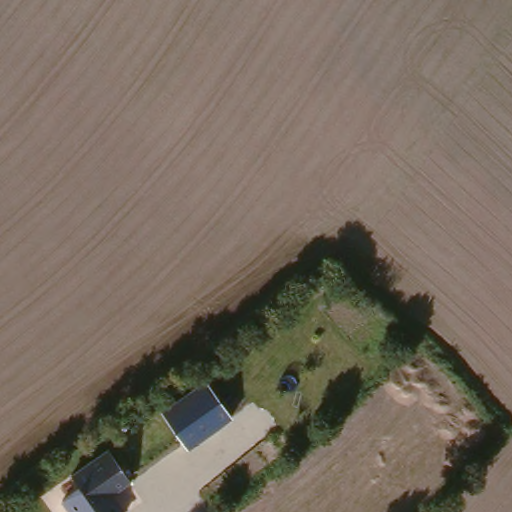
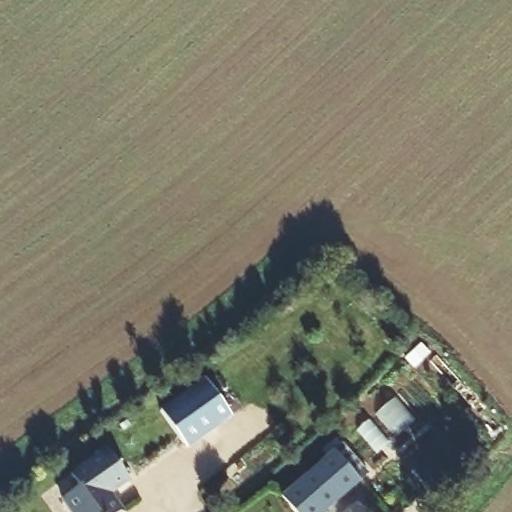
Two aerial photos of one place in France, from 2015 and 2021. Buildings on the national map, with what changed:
unchanged [(188,449),(160,410),(204,377),(233,415),(188,449)]
unchanged [(58,502),(79,487),(66,470),(103,445),(128,481),(108,496),(119,512),(65,512),(58,502)]
new [(335,450),(361,481),(326,512),(295,512),(281,496),(335,450)]

